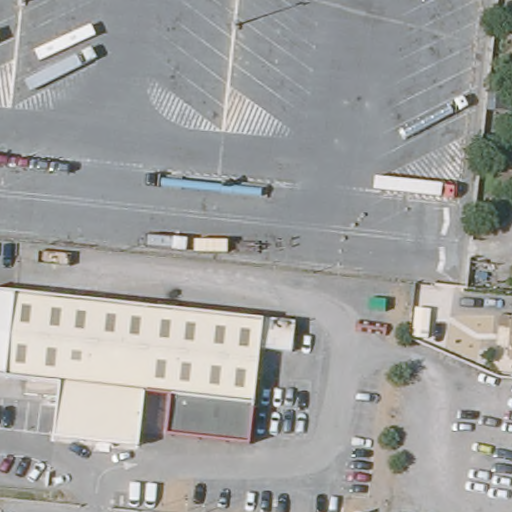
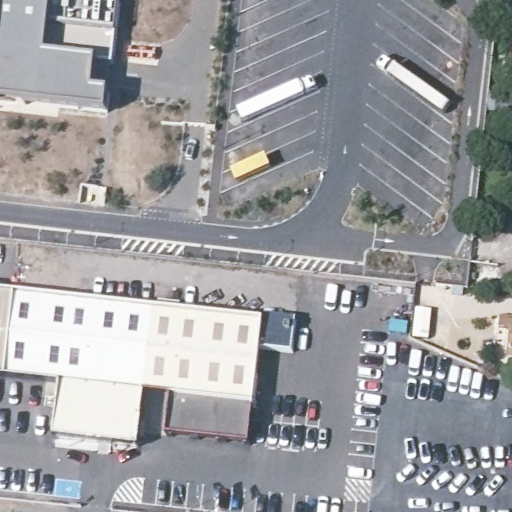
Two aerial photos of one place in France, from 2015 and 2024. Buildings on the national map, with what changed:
new [(109,95),(107,110),(0,100),(0,29),(3,0),(121,0),(118,30),(109,95)]
unchanged [(4,379),(0,378),(0,291),(14,294),(4,379)]
unchanged [(173,399),(143,396),(137,449),(54,440),(60,386),(4,379),(14,294),(295,327),(291,357),(259,353),(252,408),(173,399)]
unchanged [(504,317),(512,317),(512,358),(500,357),(504,317)]
unchanged [(251,445),(170,435),(173,399),(252,408),(251,445)]

